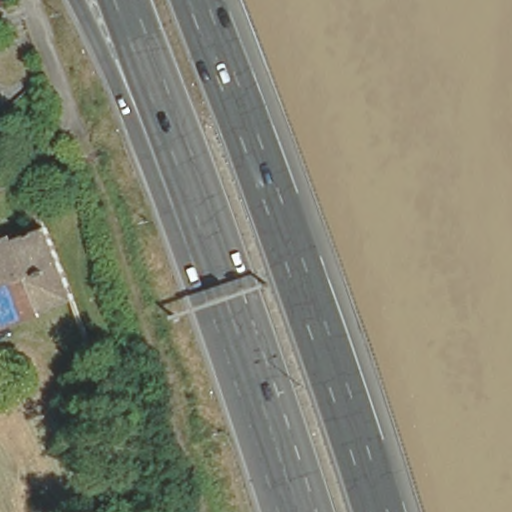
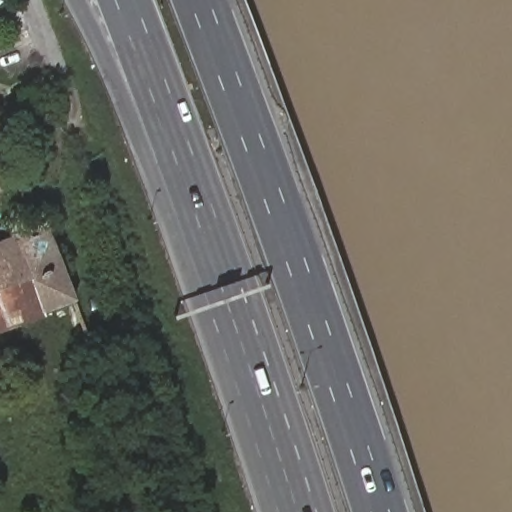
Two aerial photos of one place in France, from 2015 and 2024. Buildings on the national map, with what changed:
unchanged [(0,322),(0,242),(39,227),(68,299),(0,322)]

